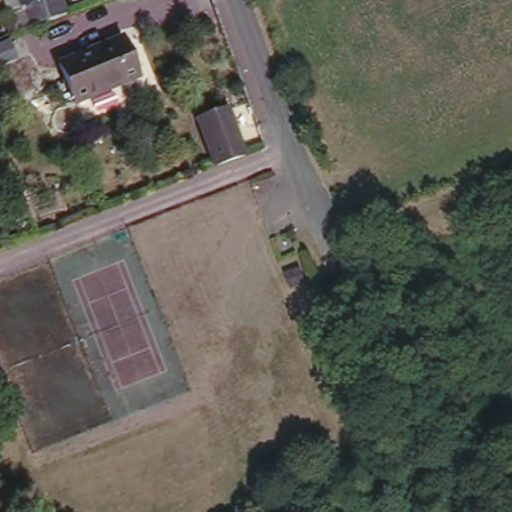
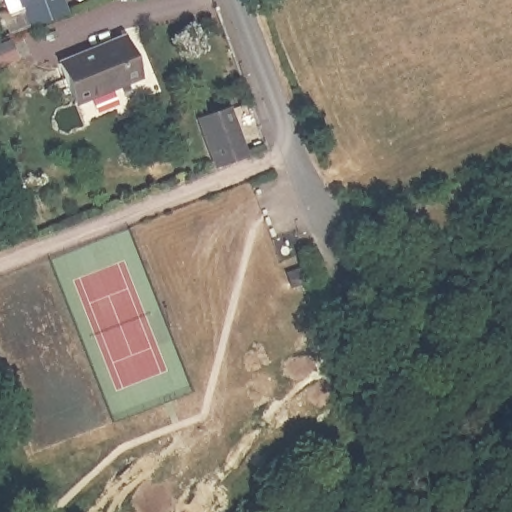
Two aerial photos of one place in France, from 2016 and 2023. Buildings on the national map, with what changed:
unchanged [(14,20),(32,13),(28,0),(72,0),(79,19),(22,41),(14,20)]
unchanged [(64,60),(126,33),(142,73),(81,100),(64,60)]
unchanged [(252,149),(222,160),(206,115),(236,104),(252,149)]
unchanged [(365,470),(386,463),(391,483),(371,490),(365,470)]

